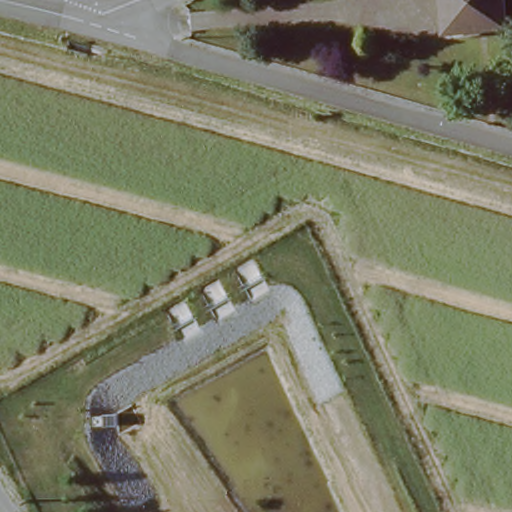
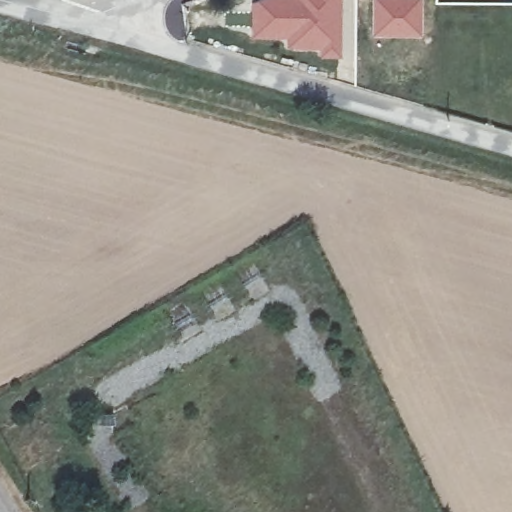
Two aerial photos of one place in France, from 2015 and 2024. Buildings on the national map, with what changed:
new [(319,58),(318,48),(287,47),(286,37),(252,38),(251,0),(343,0),(344,57),(319,58)]
new [(372,32),(371,0),(422,0),(421,34),(419,34),(418,48),(373,47),(372,32)]
demolished [(444,30),(440,0),(496,0),(499,23),(444,30)]

